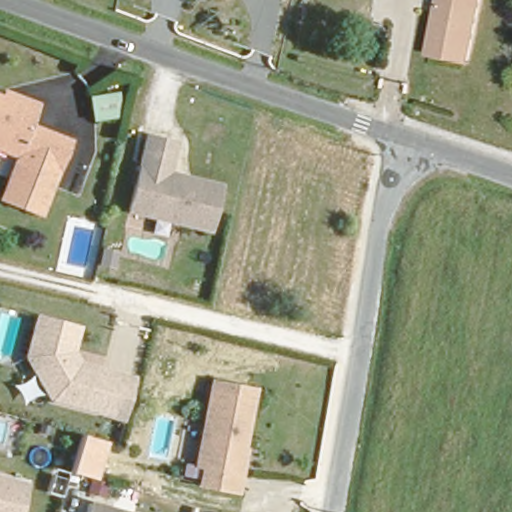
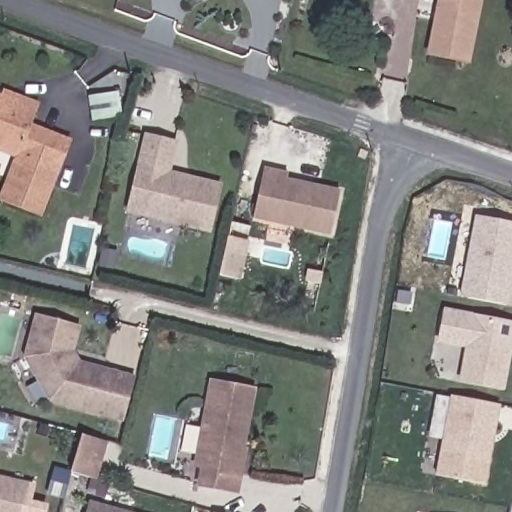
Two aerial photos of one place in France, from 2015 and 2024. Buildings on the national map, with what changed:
unchanged [(440,0),(479,0),(469,57),(430,49),(440,0)]
unchanged [(70,137),(56,170),(41,209),(1,194),(17,154),(0,148),(0,92),(1,92),(4,85),(27,95),(41,100),(33,122),(70,137)]
unchanged [(176,139),(168,170),(222,181),(211,226),(130,206),(147,132),(176,139)]
new [(332,233),(253,218),(265,163),(290,170),(288,177),(343,189),(332,233)]
new [(479,217),(512,224),(512,282),(508,305),(470,298),(464,297),(467,282),(479,217)]
new [(230,235),(250,239),(247,254),(242,278),(222,275),(227,250),(230,235)]
new [(447,310),(512,323),(512,344),(504,388),(463,381),(469,345),(441,340),(447,310)]
unchanged [(121,419),(49,398),(26,356),(39,315),(78,327),(71,349),(68,348),(65,355),(73,364),(81,367),(83,363),(134,379),(121,419)]
unchanged [(197,480),(201,461),(194,460),(208,396),(212,377),(254,387),(249,408),(240,448),(242,448),(233,488),(197,480)]
new [(454,396),(501,404),(486,484),(439,475),(454,396)]
unchanged [(97,480),(68,473),(81,432),(109,440),(97,480)]
unchanged [(22,512),(0,512),(0,475),(30,482),(22,512)]
unchanged [(84,512),(86,504),(120,512),(84,512)]
unchanged [(217,512),(213,512),(214,511),(217,512)]

